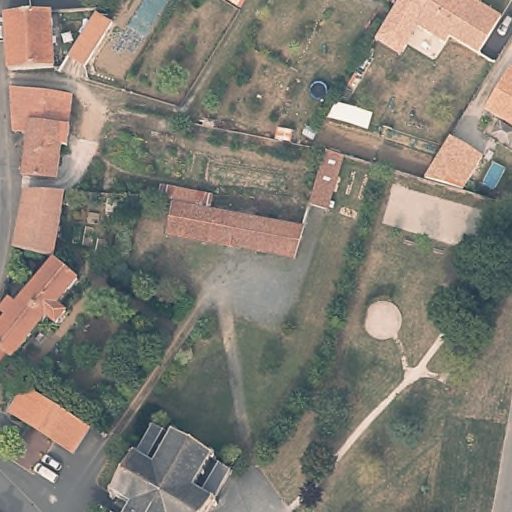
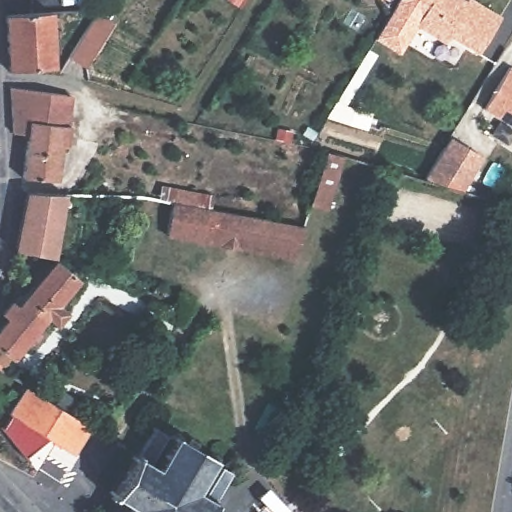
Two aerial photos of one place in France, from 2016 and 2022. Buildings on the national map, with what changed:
unchanged [(468,0),(478,0),(503,15),(481,53),(451,36),(448,43),(418,26),(421,19),(397,5),(400,0),(459,0),(466,4),(468,0)]
unchanged [(395,4),(397,5),(421,19),(418,26),(400,55),(375,39),(395,4)]
unchanged [(90,12),(107,21),(85,66),(66,56),(84,24),(90,12)]
unchanged [(50,13),(54,67),(10,71),(5,14),(50,13)]
unchanged [(512,71),(512,128),(481,111),(505,67),(512,71)]
unchanged [(25,170),(31,131),(16,128),(15,88),(45,94),(67,98),(65,120),(56,174),(25,170)]
unchanged [(483,156),(462,191),(425,179),(450,138),(483,156)]
unchanged [(342,153),(327,207),(310,201),(325,148),(342,153)]
unchanged [(263,215),(303,223),(295,256),(289,255),(160,235),(167,200),(161,199),(164,187),(210,195),(209,206),(224,208),(263,215)]
unchanged [(48,255),(15,253),(30,193),(62,195),(48,255)]
unchanged [(3,313),(11,302),(19,308),(56,262),(79,281),(57,306),(65,313),(59,320),(51,314),(14,358),(12,357),(5,367),(0,363),(0,331),(10,319),(3,313)]
unchanged [(73,453),(57,444),(21,423),(7,415),(22,387),(36,396),(72,418),(88,427),(73,453)]
unchanged [(225,493),(222,500),(229,502),(224,509),(218,505),(214,512),(122,512),(126,506),(117,500),(112,505),(107,500),(109,495),(104,490),(107,485),(115,488),(135,456),(130,452),(132,446),(140,449),(142,444),(150,448),(160,434),(169,438),(173,432),(179,435),(182,430),(188,432),(185,439),(207,453),(213,448),(217,451),(214,458),(220,461),(216,468),(227,476),(219,489),(225,493)]

